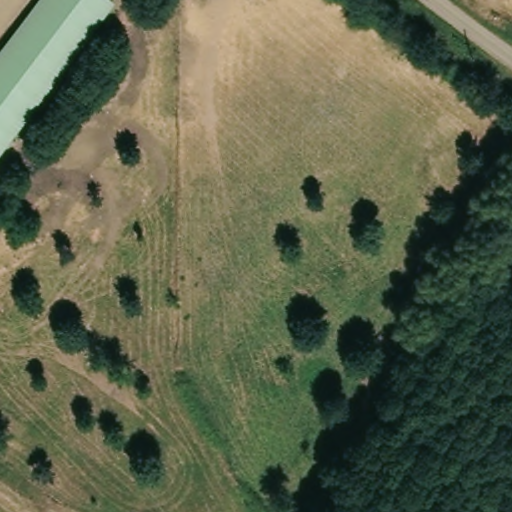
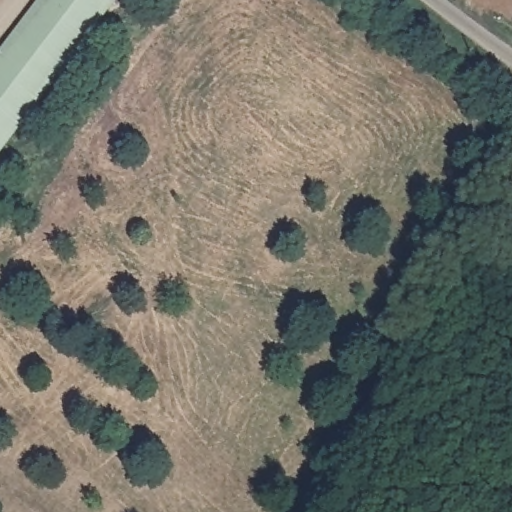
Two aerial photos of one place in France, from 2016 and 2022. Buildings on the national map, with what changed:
unchanged [(109,10),(0,155),(0,78),(58,0),(96,0),(109,10)]

